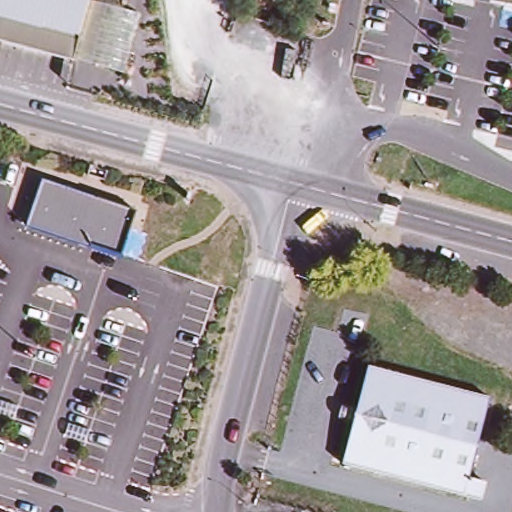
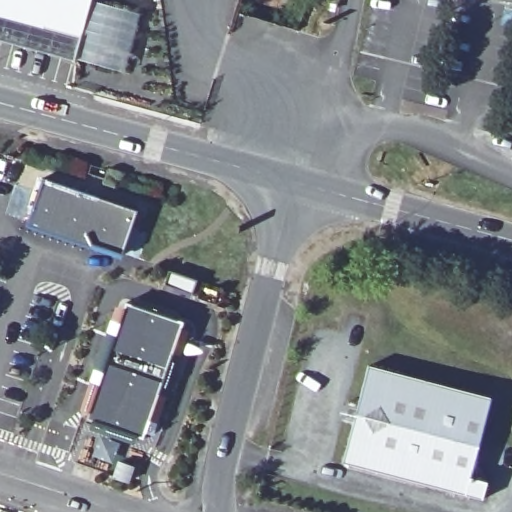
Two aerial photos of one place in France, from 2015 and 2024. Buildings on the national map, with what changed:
unchanged [(74,48),(0,26),(0,0),(89,0),(74,48)]
new [(141,13),(126,73),(84,61),(100,2),(141,13)]
unchanged [(69,69),(0,50),(0,26),(74,48),(69,69)]
unchanged [(136,209),(120,260),(27,229),(41,181),(136,209)]
new [(126,302),(183,322),(141,438),(84,417),(98,381),(93,380),(96,370),(101,371),(115,332),(110,331),(114,321),(119,322),(126,302)]
unchanged [(469,480),(486,484),(482,503),(343,466),(369,368),(491,400),(469,480)]

